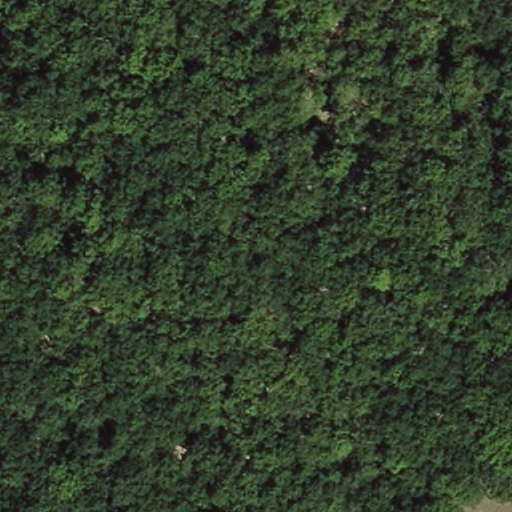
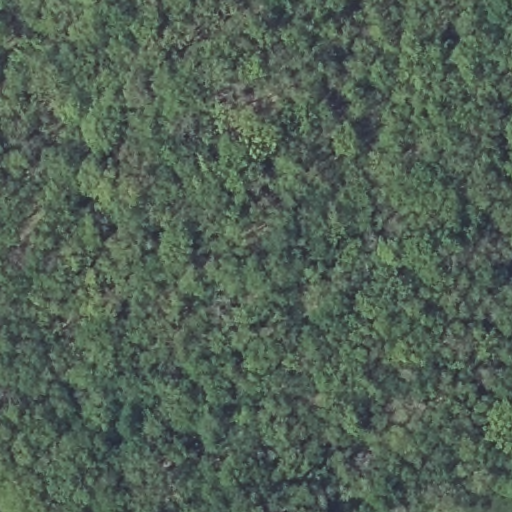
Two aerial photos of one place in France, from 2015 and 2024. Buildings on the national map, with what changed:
[]

